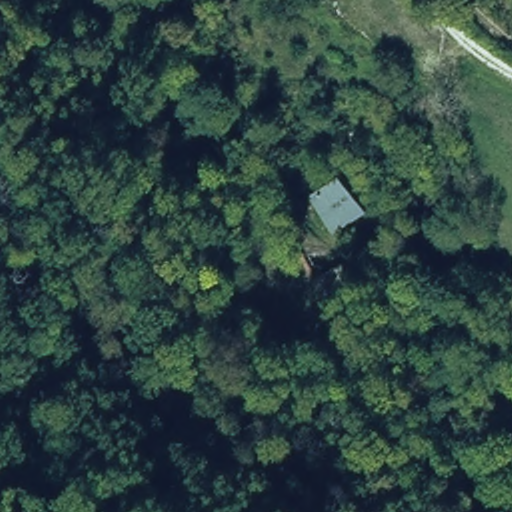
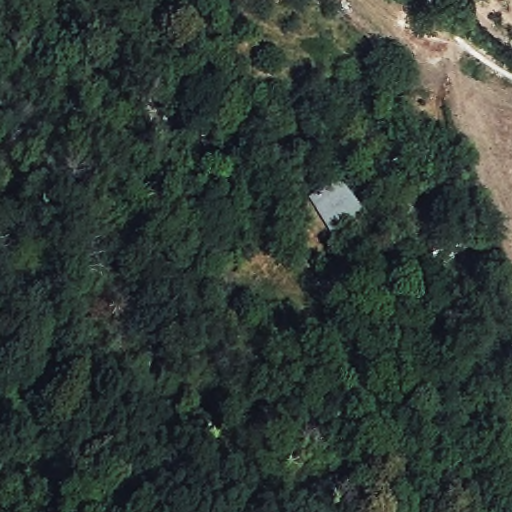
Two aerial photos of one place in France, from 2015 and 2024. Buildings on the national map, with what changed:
unchanged [(364,216),(335,237),(306,198),(338,177),(364,216)]

